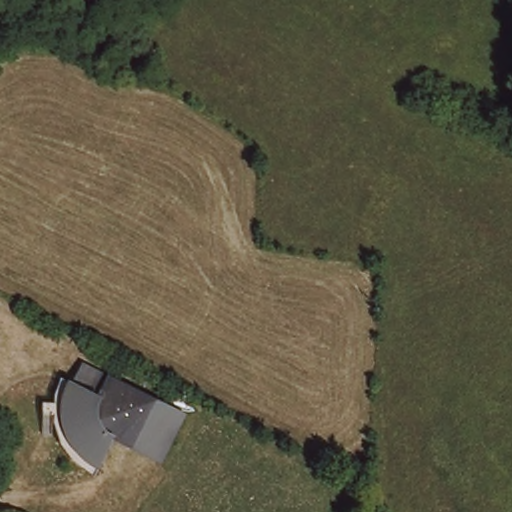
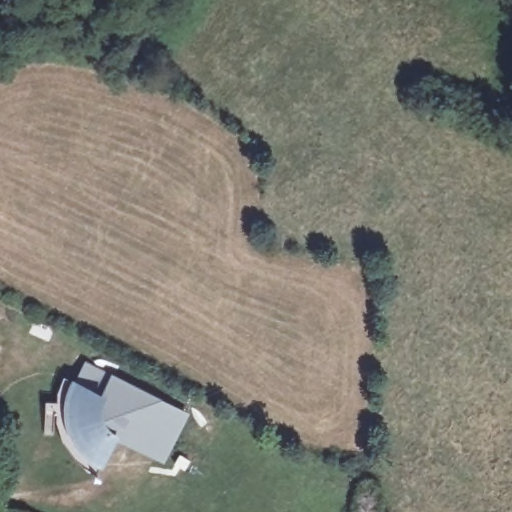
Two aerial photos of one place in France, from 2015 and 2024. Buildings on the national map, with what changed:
unchanged [(163,467),(112,442),(97,470),(75,437),(73,429),(71,418),(70,405),(46,403),(59,381),(75,389),(86,366),(187,418),(163,467)]

